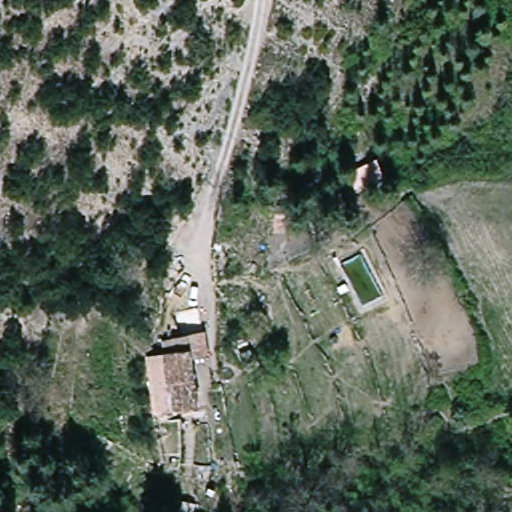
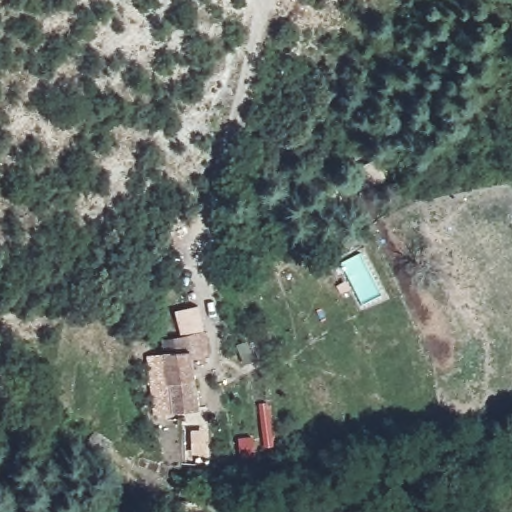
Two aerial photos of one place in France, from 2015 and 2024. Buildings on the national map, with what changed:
unchanged [(199,338),(204,364),(191,366),(200,416),(174,421),(160,346),(199,338)]

